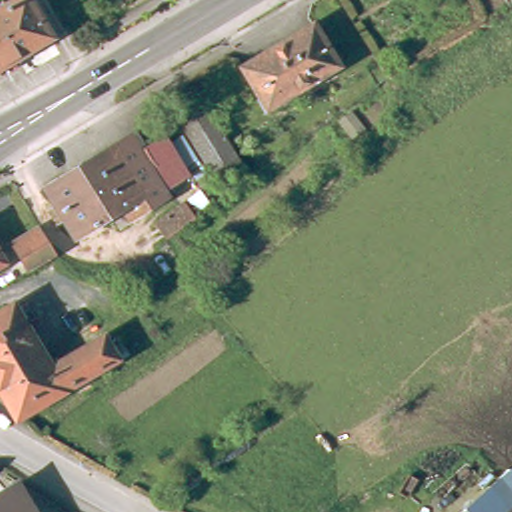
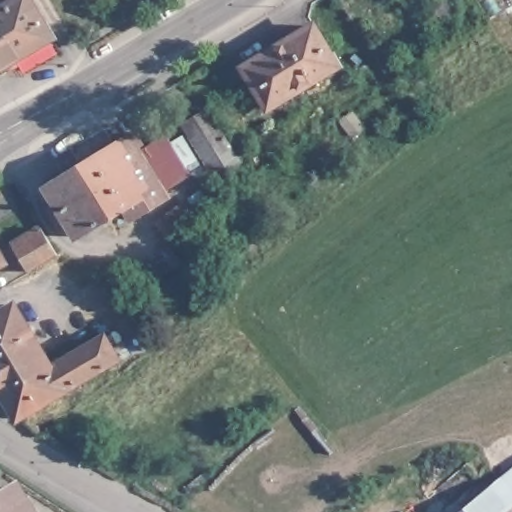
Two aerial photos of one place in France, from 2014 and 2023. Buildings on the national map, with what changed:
unchanged [(49,43),(0,73),(0,17),(24,2),(49,43)]
unchanged [(293,106),(288,100),(269,111),(245,73),(313,33),(336,71),(299,93),(303,101),(293,106)]
unchanged [(238,169),(213,183),(183,131),(207,117),(238,169)]
unchanged [(189,179),(166,193),(170,200),(129,224),(122,212),(76,239),(66,223),(59,227),(51,213),(57,210),(46,191),(133,140),(142,155),(166,140),(189,179)]
unchanged [(179,234),(178,235),(168,222),(194,203),(204,216),(179,234)]
unchanged [(44,233),(61,259),(34,275),(18,248),(44,233)]
unchanged [(0,265),(0,245),(9,260),(0,265)]
unchanged [(23,324),(34,318),(40,333),(30,338),(42,358),(48,369),(104,338),(118,364),(15,422),(0,395),(0,318),(15,310),(23,324)]
unchanged [(494,512),(482,498),(512,472),(512,512),(494,512)]
unchanged [(20,496),(0,509),(0,494),(14,485),(20,496)]
unchanged [(494,512),(466,512),(482,498),(494,512)]
unchanged [(31,512),(25,512),(29,510),(31,512)]

